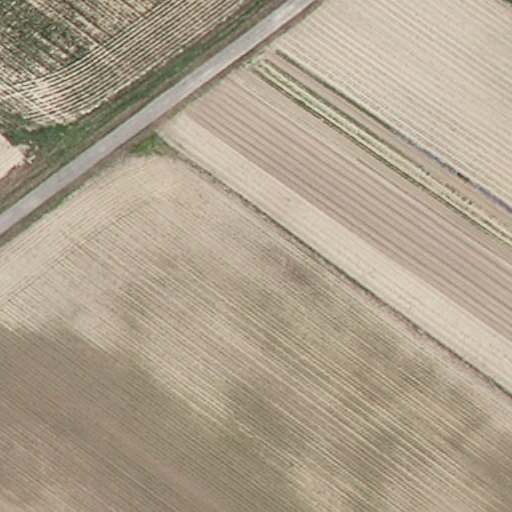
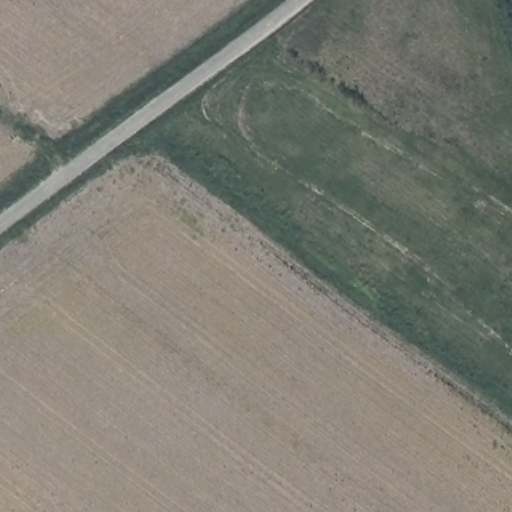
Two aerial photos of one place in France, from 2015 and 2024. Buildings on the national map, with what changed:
[]

